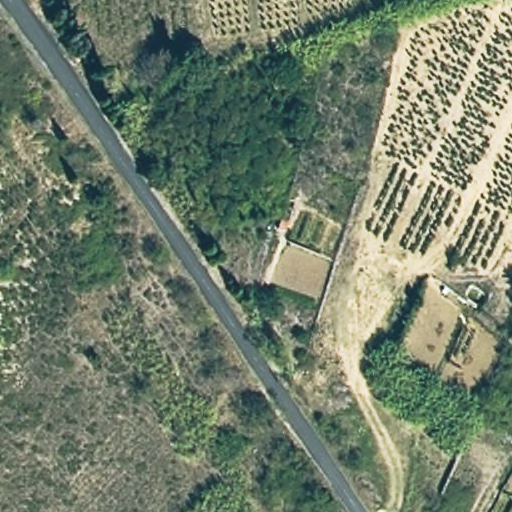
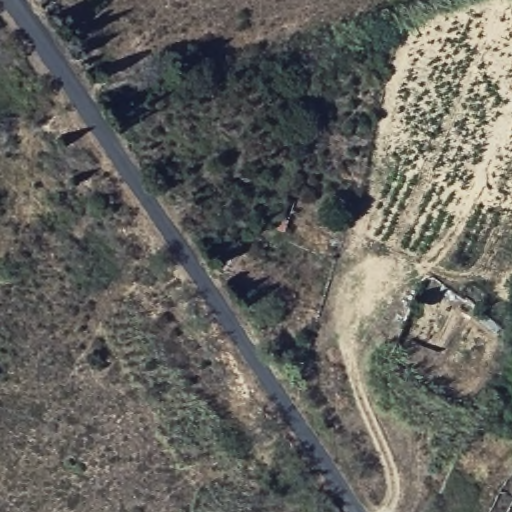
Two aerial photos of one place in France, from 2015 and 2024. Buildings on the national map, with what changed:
unchanged [(287,206),(285,219),(278,217),(281,205),(287,206)]

